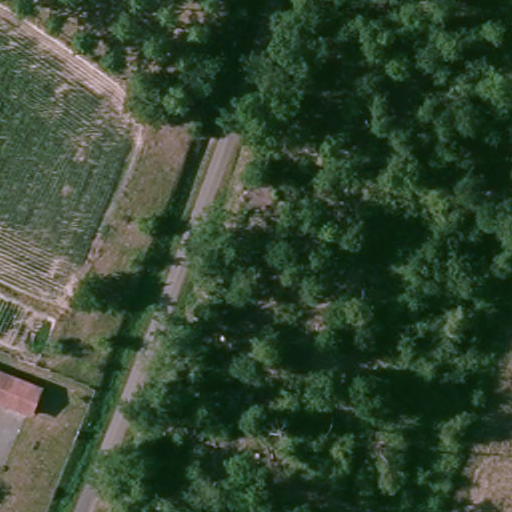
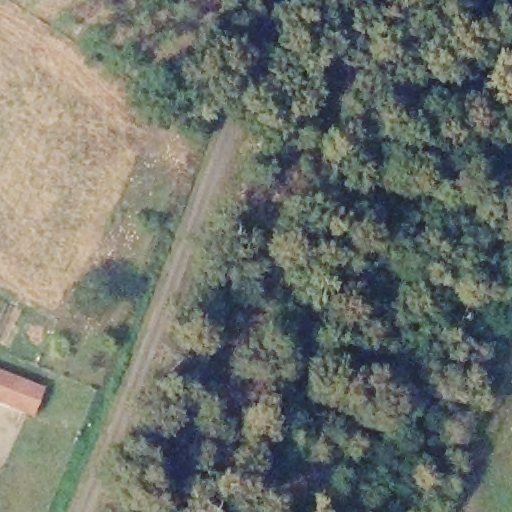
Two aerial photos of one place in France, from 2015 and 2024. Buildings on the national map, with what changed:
unchanged [(30,411),(0,397),(0,366),(41,384),(30,411)]

